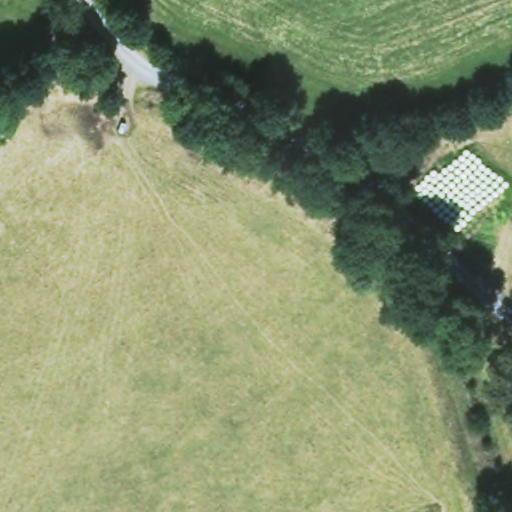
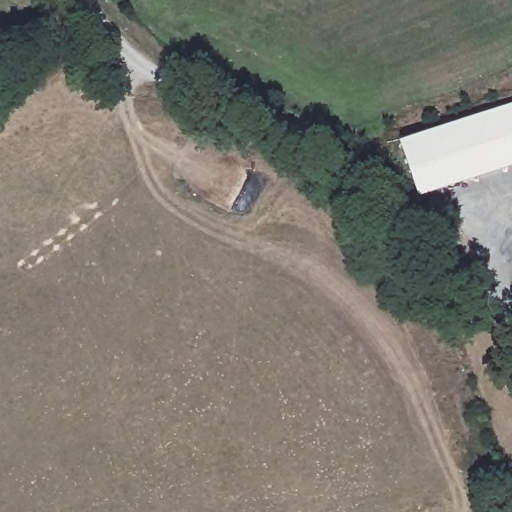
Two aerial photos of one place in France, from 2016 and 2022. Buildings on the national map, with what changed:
new [(512,164),(417,194),(400,140),(512,105),(512,164)]

